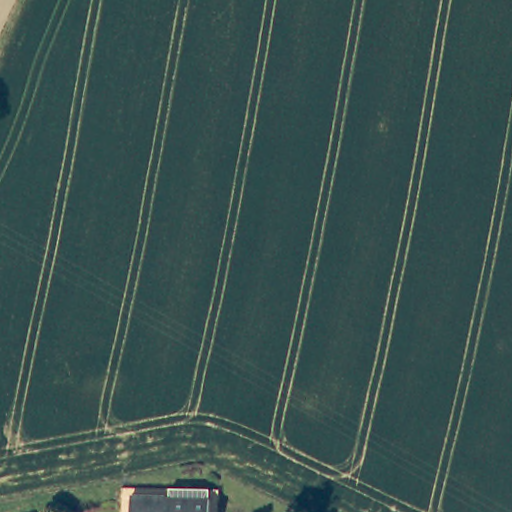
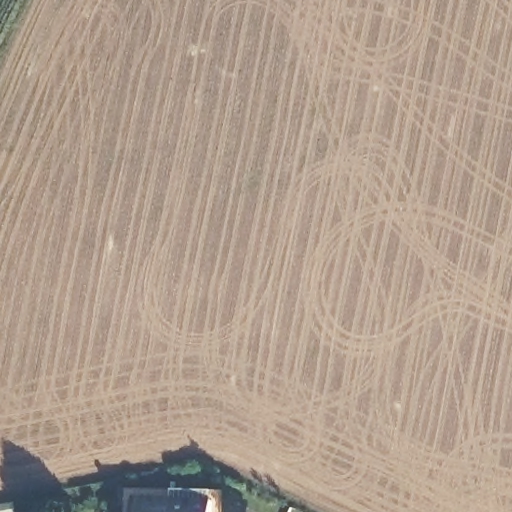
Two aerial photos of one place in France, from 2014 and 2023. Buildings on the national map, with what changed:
unchanged [(210,501),(210,512),(131,512),(131,500),(165,498),(165,502),(210,501)]

